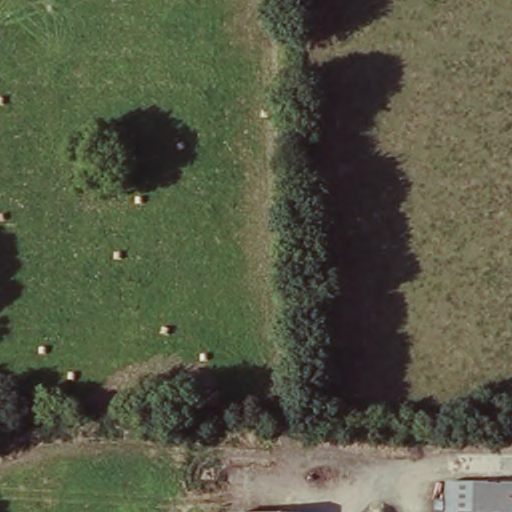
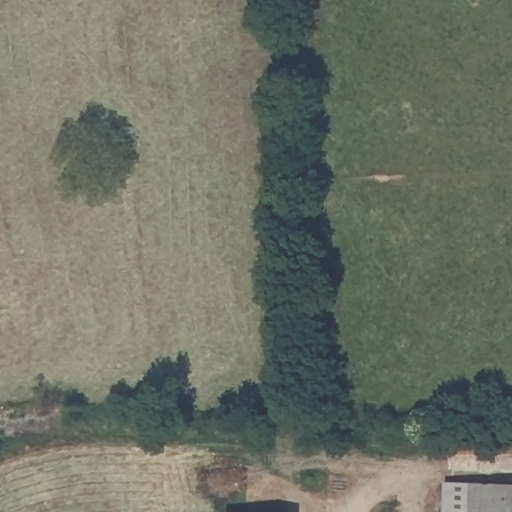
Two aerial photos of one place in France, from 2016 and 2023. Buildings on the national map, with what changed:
unchanged [(512,512),(449,512),(450,486),(512,488),(512,512)]

